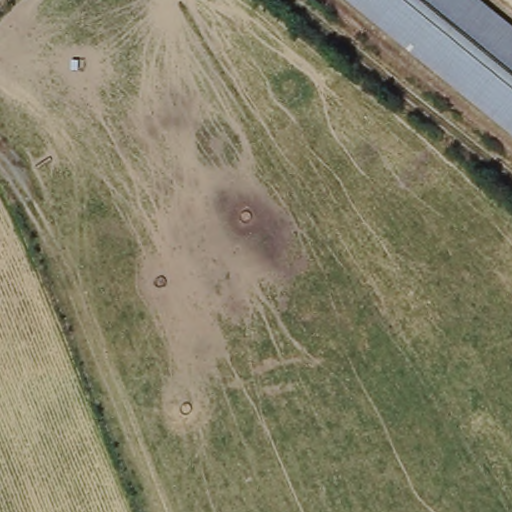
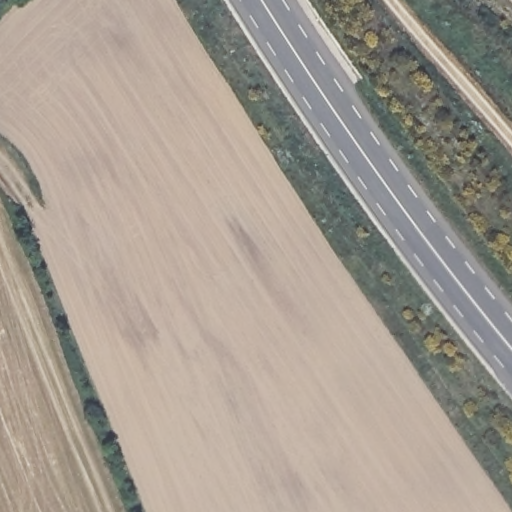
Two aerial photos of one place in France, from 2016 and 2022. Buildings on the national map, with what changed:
demolished [(512,27),(512,129),(349,0),(478,0),(512,27)]

